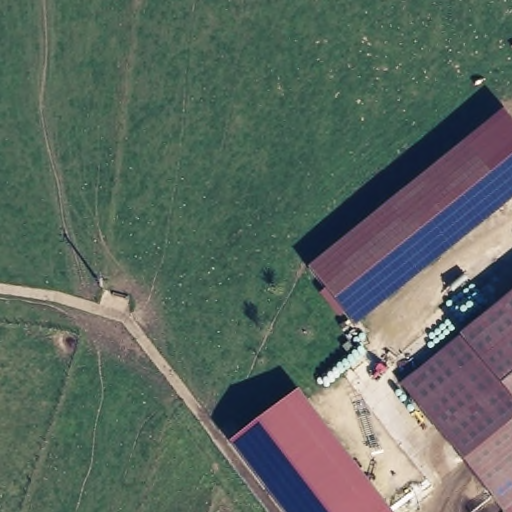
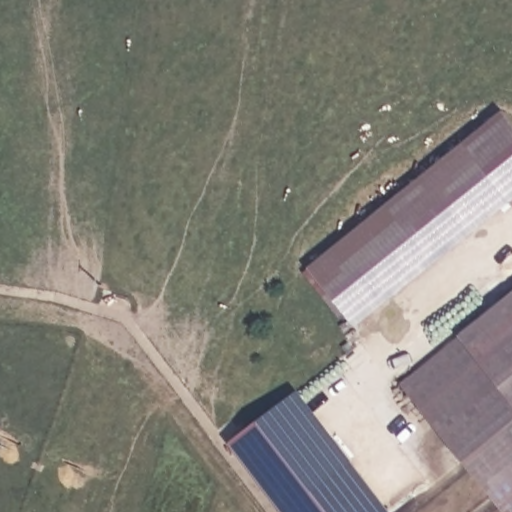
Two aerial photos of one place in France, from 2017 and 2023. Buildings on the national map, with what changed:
unchanged [(512,122),(512,200),(355,328),(307,267),(503,111),(512,122)]
unchanged [(508,512),(507,512),(404,383),(461,338),(512,296),(512,508),(508,512)]
unchanged [(299,387),(388,508),(382,512),(286,512),(232,435),(299,387)]
unchanged [(388,508),(391,512),(382,512),(388,508)]

